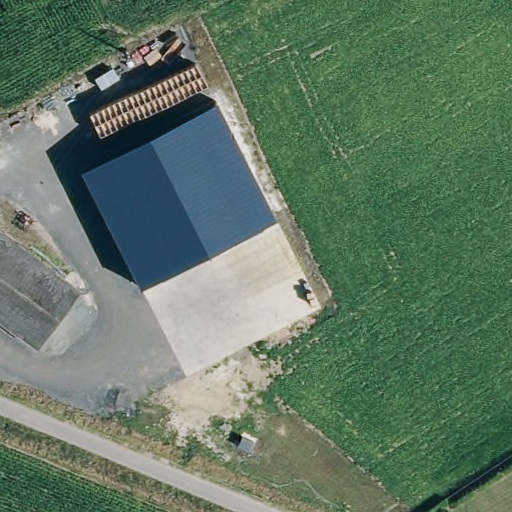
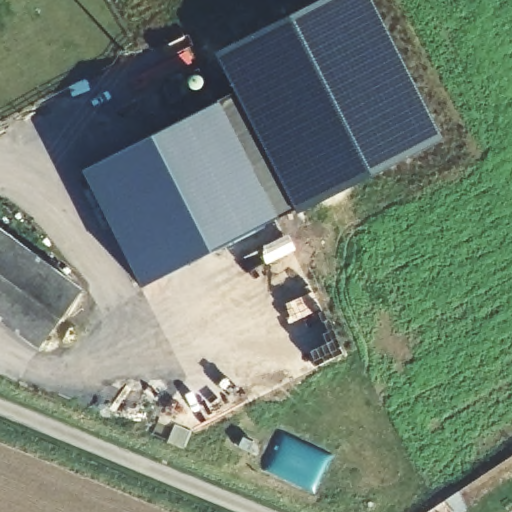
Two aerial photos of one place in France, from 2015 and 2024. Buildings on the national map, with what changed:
new [(295,213),(293,209),(274,217),(218,99),(234,92),(213,54),(320,0),(370,0),(442,140),(295,213)]
unchanged [(274,217),(142,287),(81,170),(218,99),(274,217)]
unchanged [(82,284),(45,343),(0,316),(0,234),(82,284)]

